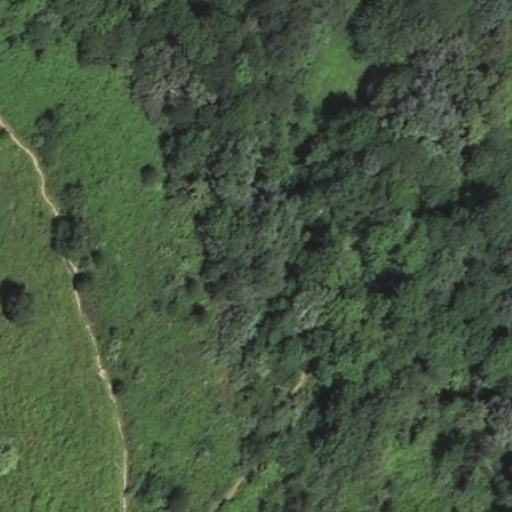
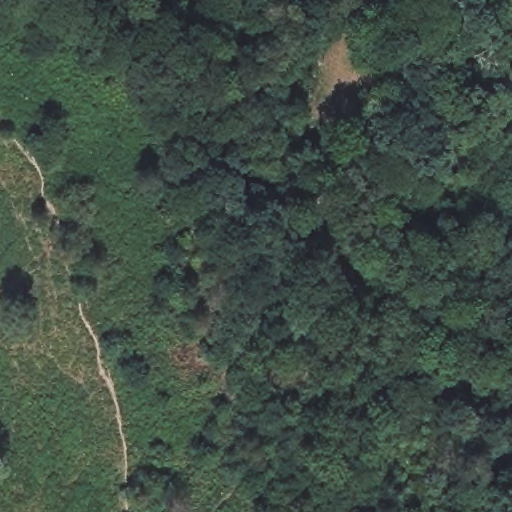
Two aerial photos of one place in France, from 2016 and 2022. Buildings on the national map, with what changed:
[]

